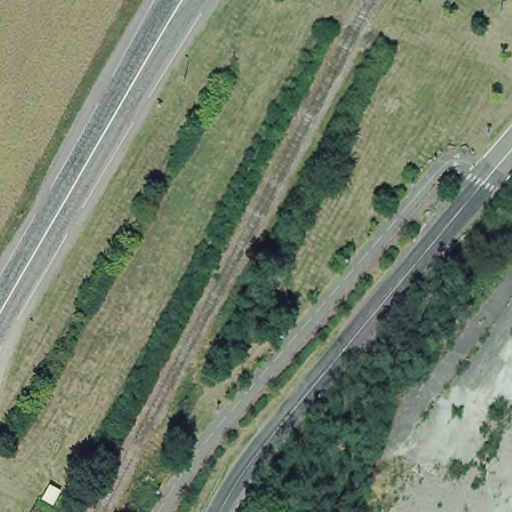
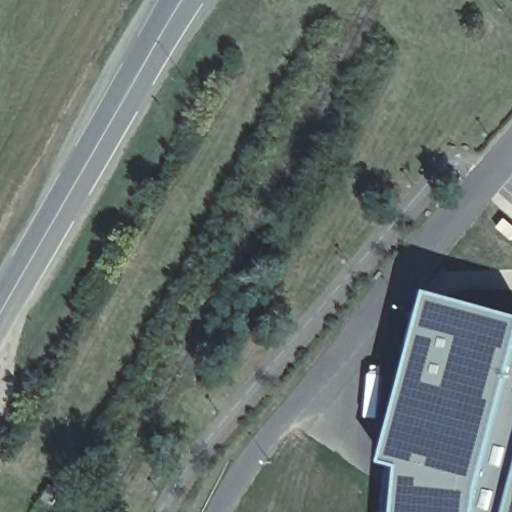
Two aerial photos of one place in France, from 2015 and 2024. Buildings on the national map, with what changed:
new [(396,512),(400,464),(384,462),(429,292),(512,316),(512,512),(396,512)]

